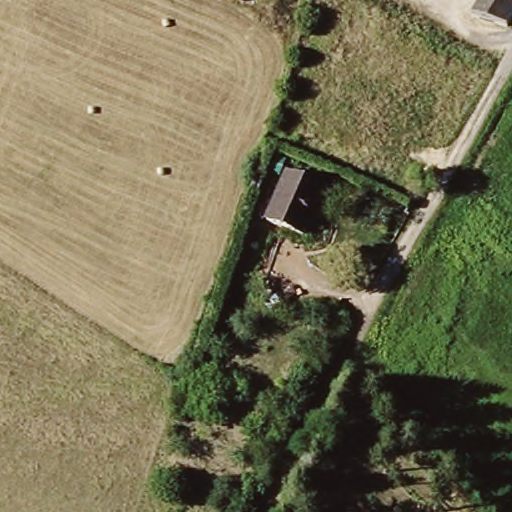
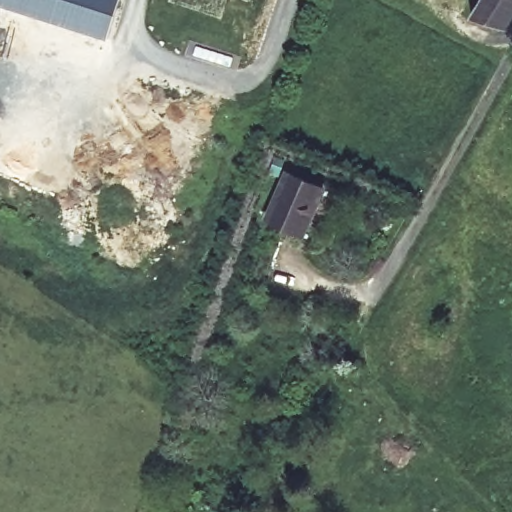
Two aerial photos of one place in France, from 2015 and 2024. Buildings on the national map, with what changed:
new [(121,0),(108,39),(0,4),(0,0),(121,0)]
unchanged [(477,22),(489,0),(512,0),(512,27),(509,32),(477,22)]
unchanged [(260,216),(279,170),(319,187),(313,201),(300,232),(293,230),(260,216)]

